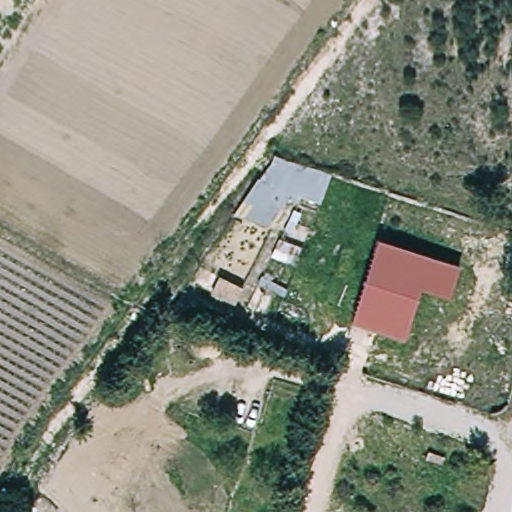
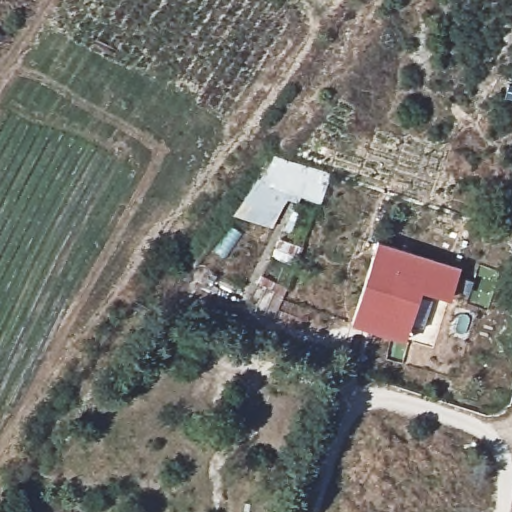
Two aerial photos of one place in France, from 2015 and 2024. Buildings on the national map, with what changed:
unchanged [(316,211),(289,205),(272,233),(232,214),(278,154),(336,175),(316,211)]
unchanged [(462,268),(453,298),(423,288),(408,340),(356,321),(380,241),(462,268)]

